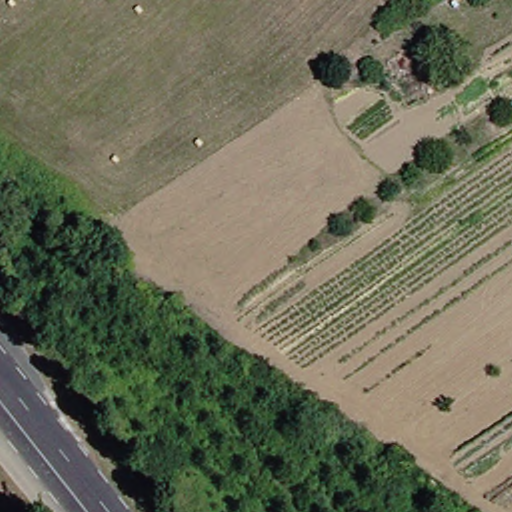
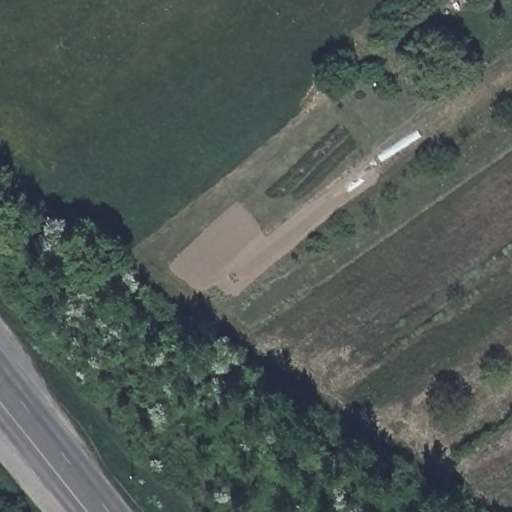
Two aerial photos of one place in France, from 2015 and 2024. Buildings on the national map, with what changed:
unchanged [(444,10),(457,0),(475,0),(477,3),(452,22),(444,10)]

